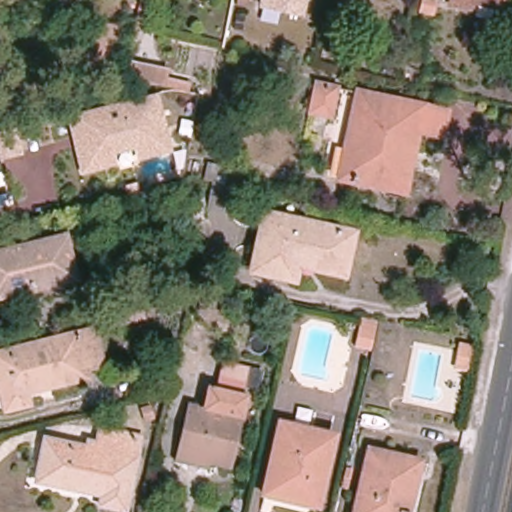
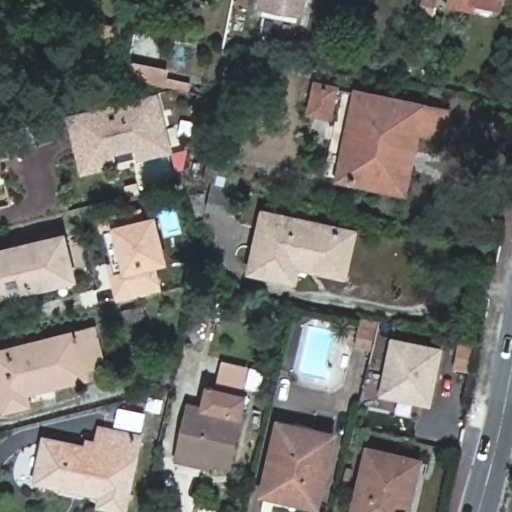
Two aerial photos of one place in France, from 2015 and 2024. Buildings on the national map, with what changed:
unchanged [(262,7),(263,0),(308,0),(305,15),(262,7)]
unchanged [(477,4),(476,10),(452,5),(453,0),(504,0),(502,9),(477,4)]
unchanged [(95,64),(98,51),(104,23),(110,24),(121,26),(115,55),(112,68),(95,64)]
unchanged [(164,76),(161,91),(124,83),(127,68),(164,76)]
unchanged [(165,91),(167,85),(187,89),(186,96),(165,91)]
unchanged [(332,116),(313,113),(318,85),(338,89),(332,116)]
unchanged [(360,93),(448,111),(443,136),(420,131),(412,129),(398,191),(341,179),(360,93)]
unchanged [(82,174),(76,150),(74,140),(68,119),(152,99),(165,153),(137,160),(110,166),(82,174)]
unchanged [(0,157),(0,131),(11,129),(16,153),(0,157)]
unchanged [(237,187),(217,183),(207,181),(211,165),(221,167),(240,171),(237,187)]
unchanged [(237,188),(232,214),(211,209),(217,184),(237,188)]
unchanged [(295,281),(254,271),(266,213),(355,232),(347,270),(317,263),(318,259),(300,256),(295,281)]
new [(111,225),(157,214),(170,264),(157,267),(162,287),(116,298),(110,273),(122,269),(111,225)]
unchanged [(0,296),(0,253),(66,238),(75,278),(0,296)]
unchanged [(370,319),(378,320),(372,350),(358,347),(364,317),(370,319)]
unchanged [(88,370),(90,378),(28,394),(31,405),(7,411),(0,383),(0,352),(95,329),(105,366),(88,370)]
new [(396,341),(442,351),(431,404),(385,394),(396,341)]
unchanged [(232,467),(210,463),(209,467),(179,460),(191,405),(206,408),(211,388),(220,390),(227,363),(247,368),(241,395),(247,396),(232,467)]
unchanged [(147,411),(151,423),(142,426),(139,414),(147,411)]
unchanged [(97,510),(100,500),(34,486),(42,445),(85,453),(86,448),(95,449),(98,435),(114,438),(117,423),(140,428),(137,443),(123,512),(107,512),(97,510)]
unchanged [(282,423),(336,436),(320,507),(265,494),(282,423)]
unchanged [(371,450),(421,462),(409,512),(356,512),(371,450)]

